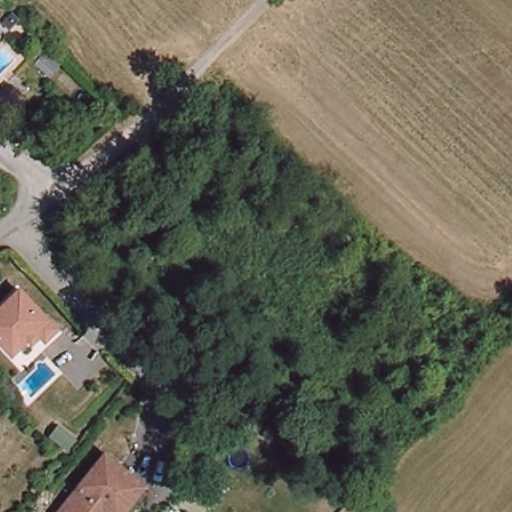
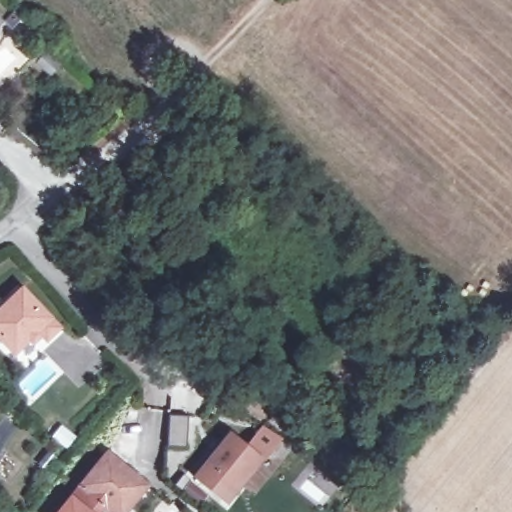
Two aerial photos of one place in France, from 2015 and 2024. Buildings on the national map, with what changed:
unchanged [(54,327),(42,338),(33,329),(10,352),(0,341),(0,305),(18,288),(54,327)]
new [(229,431),(263,460),(226,506),(192,478),(229,431)]
unchanged [(107,452),(146,485),(124,512),(115,512),(113,510),(111,512),(59,512),(107,452)]

